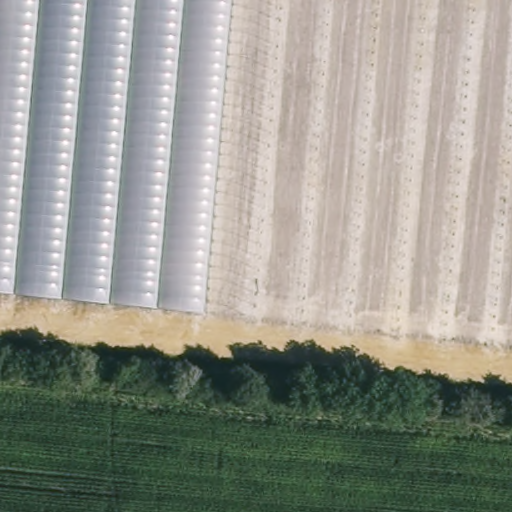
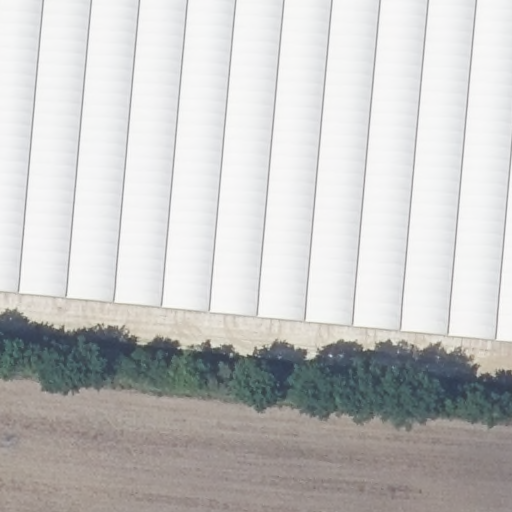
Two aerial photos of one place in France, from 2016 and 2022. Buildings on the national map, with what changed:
unchanged [(0,293),(0,0),(233,0),(206,314),(0,293)]
new [(233,0),(512,0),(512,344),(206,314),(233,0)]

